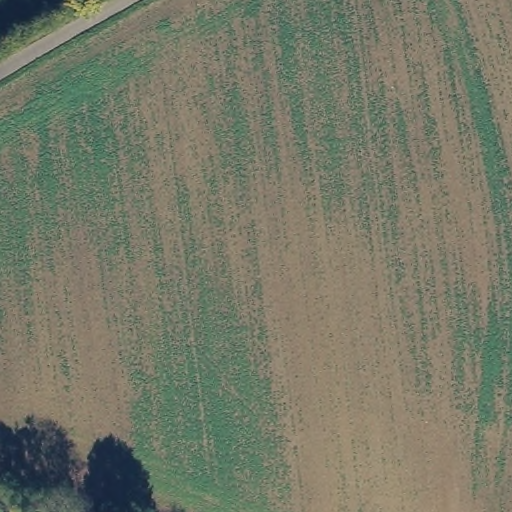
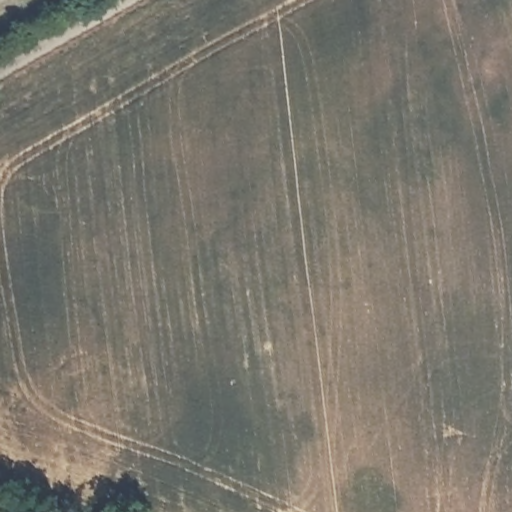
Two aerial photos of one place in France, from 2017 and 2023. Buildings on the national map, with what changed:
[]

